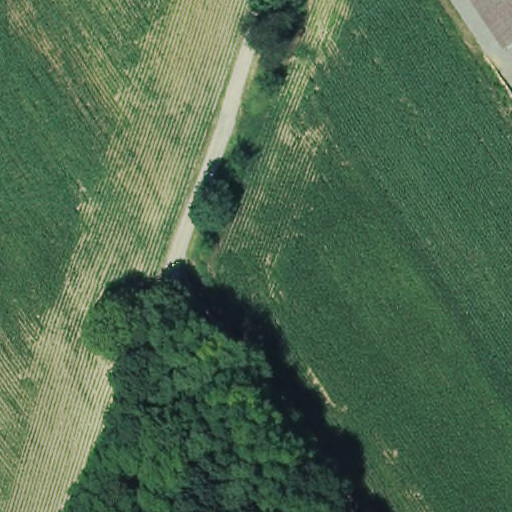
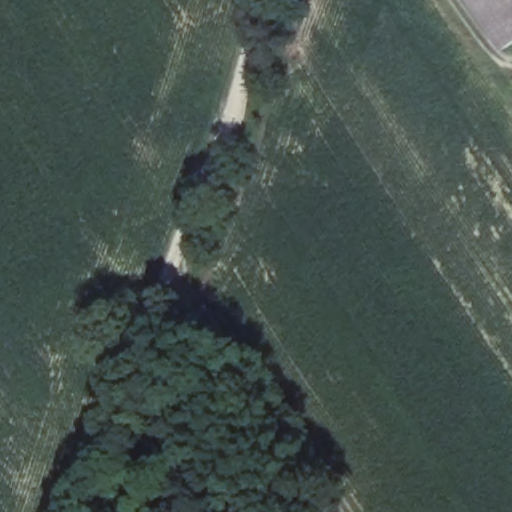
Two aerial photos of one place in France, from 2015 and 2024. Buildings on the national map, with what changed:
unchanged [(477,0),(512,0),(512,53),(477,0)]

